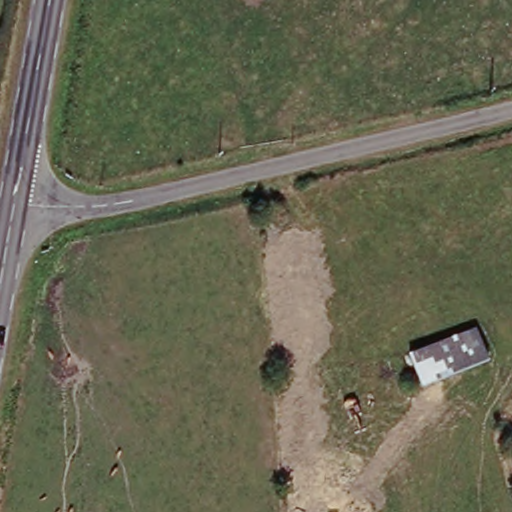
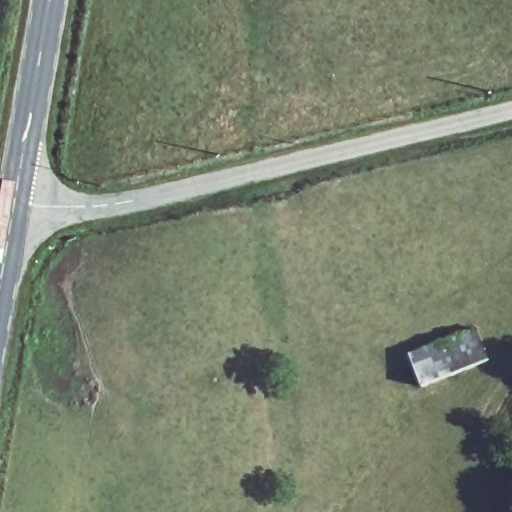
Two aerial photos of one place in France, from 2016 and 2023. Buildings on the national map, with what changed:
unchanged [(413,359),(482,333),(492,360),(422,385),(413,359)]

